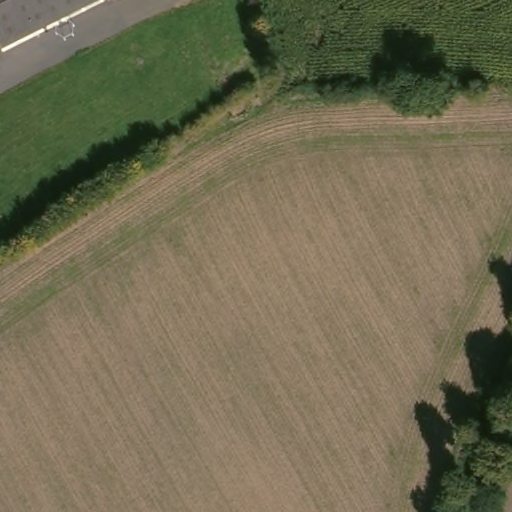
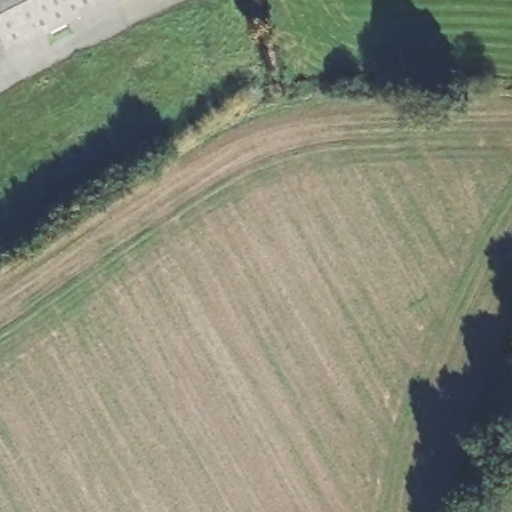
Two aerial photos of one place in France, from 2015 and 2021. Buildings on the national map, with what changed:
unchanged [(0,45),(0,0),(109,0),(4,53),(0,45)]

